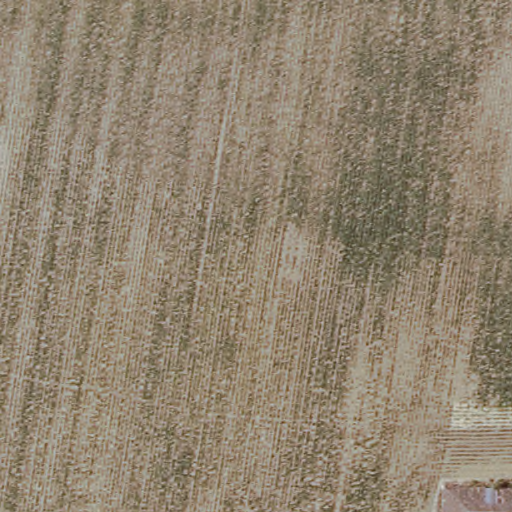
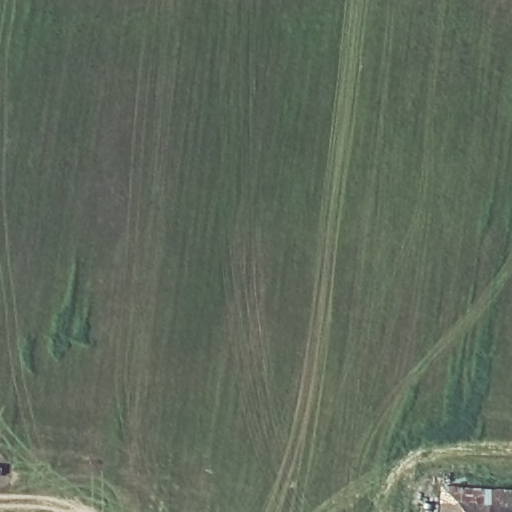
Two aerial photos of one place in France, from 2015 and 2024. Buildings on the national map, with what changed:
unchanged [(512,497),(512,512),(436,512),(436,495),(512,497)]

